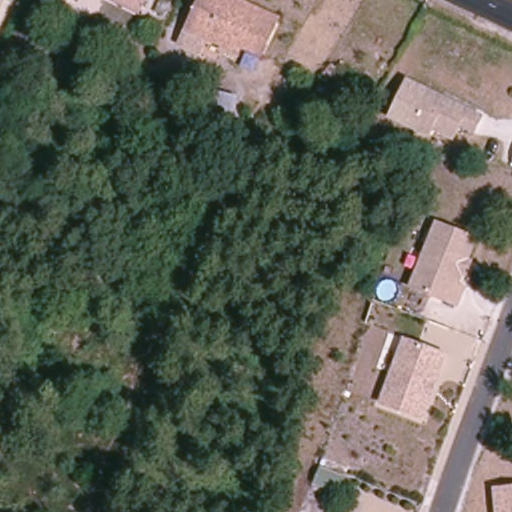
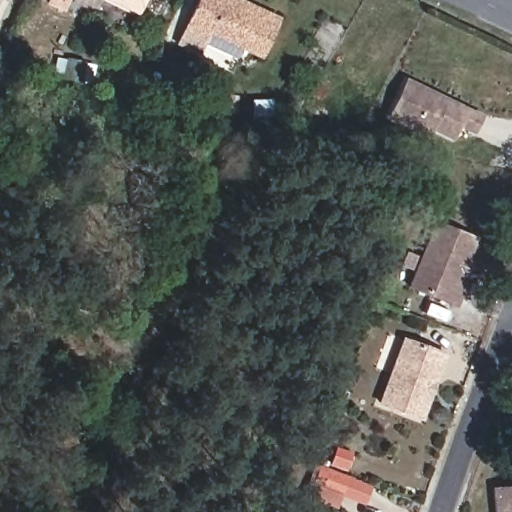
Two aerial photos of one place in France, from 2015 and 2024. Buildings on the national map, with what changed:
unchanged [(47,2),(48,0),(66,0),(61,9),(47,2)]
unchanged [(140,0),(137,4),(130,0),(140,0)]
unchanged [(198,56),(181,45),(204,0),(239,0),(278,19),(260,54),(246,48),(242,57),(207,40),(198,56)]
unchanged [(455,137),(434,127),(431,132),(427,132),(391,117),(407,81),(437,94),(446,97),(483,114),(476,130),(461,123),(455,137)]
unchanged [(209,107),(213,91),(237,96),(231,115),(209,107)]
unchanged [(468,277),(464,276),(459,288),(465,291),(457,308),(411,290),(438,225),(478,242),(469,263),(473,265),(468,277)]
unchanged [(422,419),(377,403),(401,336),(448,354),(422,419)]
new [(338,507),(307,498),(317,466),(373,485),(365,505),(342,496),(338,507)]
unchanged [(493,487),(512,486),(512,512),(495,512),(493,487)]

